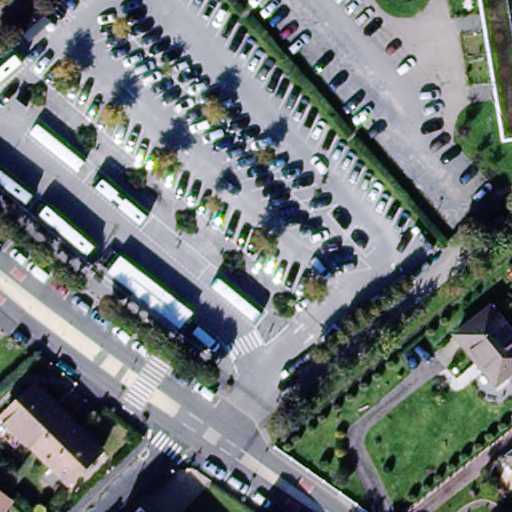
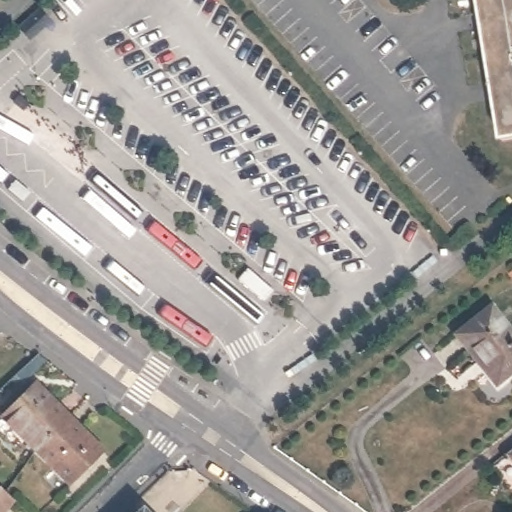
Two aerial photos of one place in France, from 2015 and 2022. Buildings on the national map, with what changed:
unchanged [(485,0),(512,0),(512,138),(507,139),(485,0)]
unchanged [(17,26),(23,22),(37,9),(46,19),(32,31),(26,36),(17,26)]
unchanged [(512,375),(495,388),(455,337),(491,310),(512,336),(512,375)]
unchanged [(37,452),(5,420),(18,408),(13,403),(29,388),(34,393),(40,386),(72,418),(37,452)]
unchanged [(105,450),(69,485),(37,452),(72,418),(105,450)]
unchanged [(512,470),(503,459),(512,451),(512,470)]
unchanged [(6,502),(16,511),(15,512),(0,512),(0,496),(6,502)]

